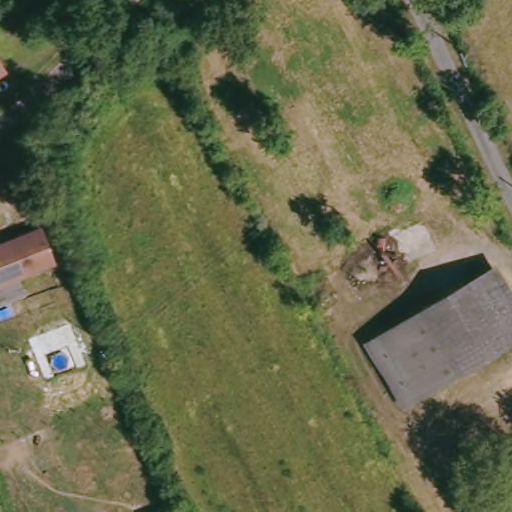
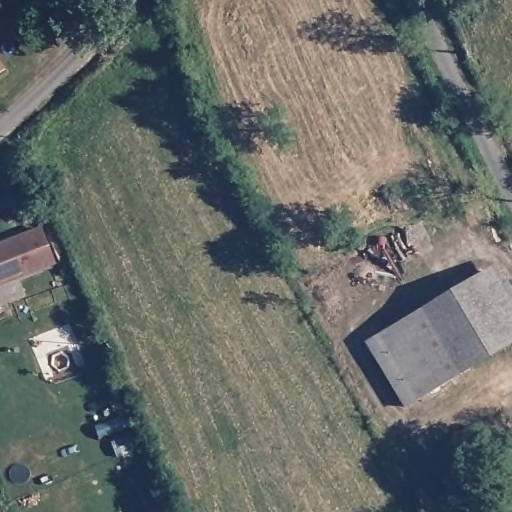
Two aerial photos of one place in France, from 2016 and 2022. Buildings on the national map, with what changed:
unchanged [(39,228),(53,262),(0,282),(0,243),(39,228)]
unchanged [(491,273),(512,310),(512,347),(434,390),(396,326),(491,273)]
unchanged [(434,390),(413,402),(376,337),(396,326),(434,390)]

